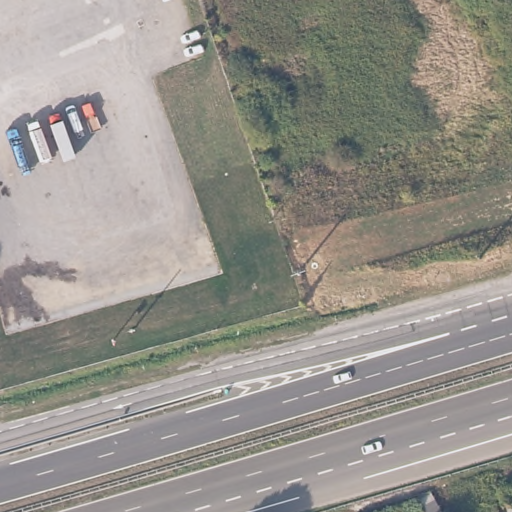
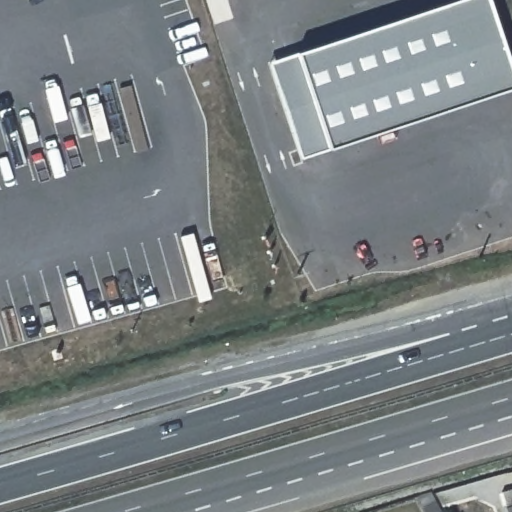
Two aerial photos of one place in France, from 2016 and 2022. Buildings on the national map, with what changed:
new [(452,0),(491,0),(512,65),(512,87),(329,146),(300,157),(268,61),(297,51),(452,0)]
unchanged [(501,488),(512,484),(512,499),(506,501),(501,488)]
unchanged [(512,502),(512,512),(509,512),(506,504),(512,502)]

